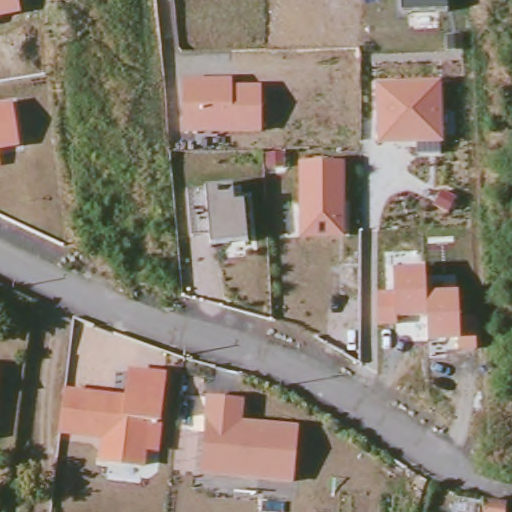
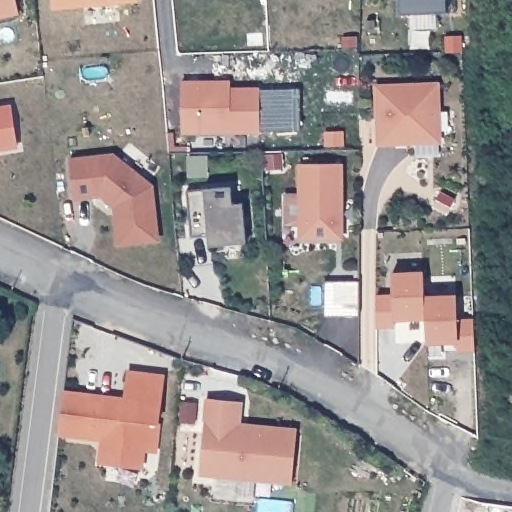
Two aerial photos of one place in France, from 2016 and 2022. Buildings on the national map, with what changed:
unchanged [(0,0),(18,0),(20,14),(0,19),(0,0)]
new [(54,10),(53,0),(138,0),(138,3),(54,10)]
unchanged [(447,0),(447,11),(402,13),(401,0),(447,0)]
unchanged [(232,79),(232,86),(261,86),(261,133),(182,131),(182,79),(232,79)]
unchanged [(380,146),(377,84),(442,84),(444,144),(380,146)]
unchanged [(20,147),(0,151),(0,104),(13,102),(20,147)]
new [(75,199),(69,155),(115,151),(153,184),(160,243),(117,246),(113,206),(100,196),(75,199)]
unchanged [(297,162),(345,163),(345,238),(299,239),(297,162)]
unchanged [(212,248),(211,237),(193,239),(190,192),(233,188),(235,211),(245,210),(248,244),(212,248)]
unchanged [(377,293),(394,295),(392,270),(425,268),(425,294),(457,291),(459,318),(475,319),(477,351),(458,352),(458,343),(428,344),(427,319),(394,319),(395,324),(377,325),(377,293)]
unchanged [(162,424),(147,423),(143,468),(100,464),(101,441),(61,437),(65,390),(127,398),(130,371),(167,374),(162,424)]
unchanged [(292,482),(200,472),(207,395),(242,399),(240,426),(247,427),(248,423),(298,428),(292,482)]
demolished [(505,504),(505,512),(454,512),(455,500),(505,504)]

